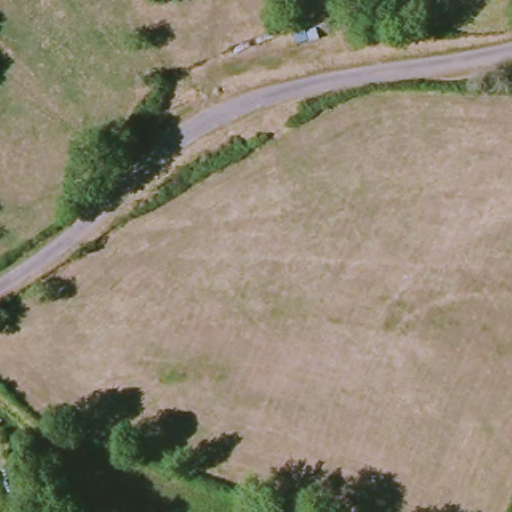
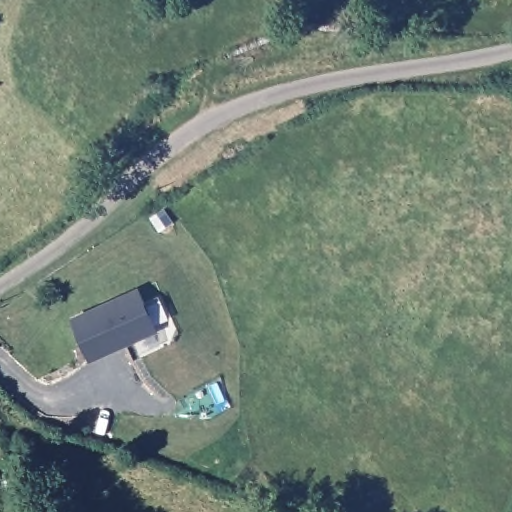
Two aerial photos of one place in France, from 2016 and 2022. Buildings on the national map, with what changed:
new [(69,317),(138,286),(158,331),(88,362),(69,317)]

